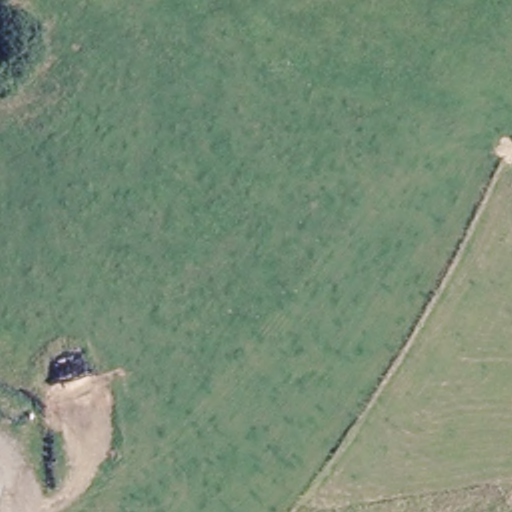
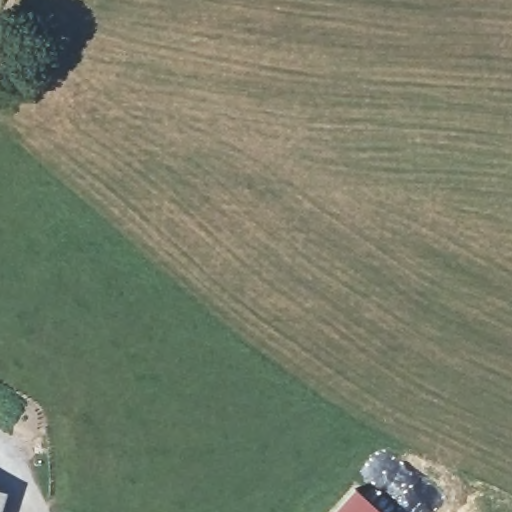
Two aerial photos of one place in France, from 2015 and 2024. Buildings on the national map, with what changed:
new [(382,512),(334,512),(355,489),(382,512)]
unchanged [(2,512),(0,512),(0,493),(8,496),(2,512)]

